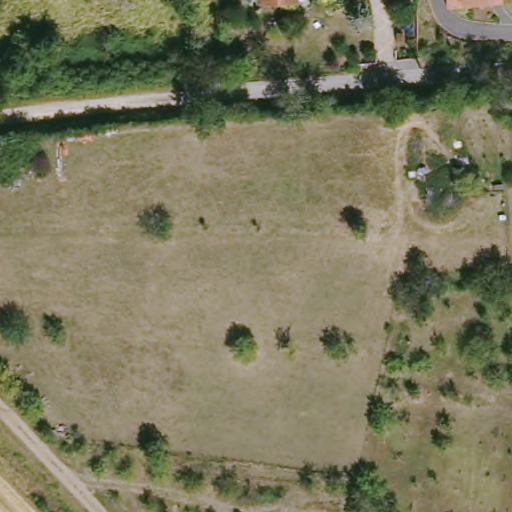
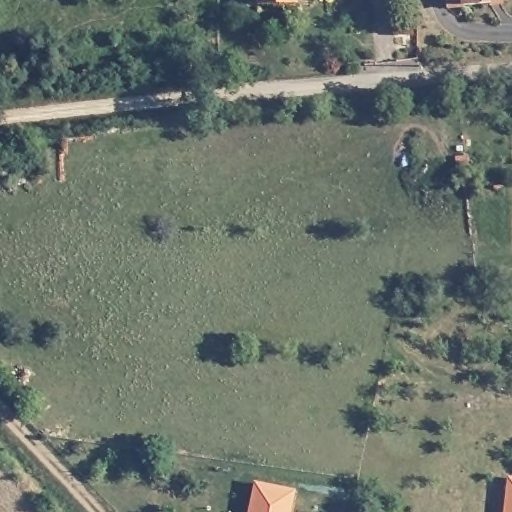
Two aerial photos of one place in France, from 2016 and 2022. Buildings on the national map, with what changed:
unchanged [(299,10),(269,11),(269,0),(299,0),(299,10)]
unchanged [(453,0),(509,0),(496,1),(453,5),(453,0)]
new [(512,512),(505,512),(509,478),(512,479),(512,512)]
new [(291,512),(249,512),(256,481),(296,489),(291,512)]

